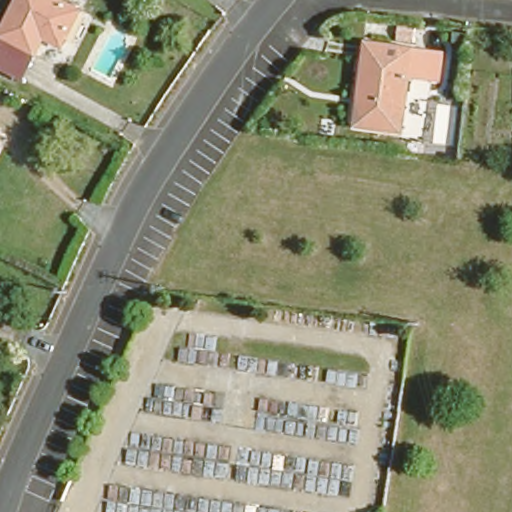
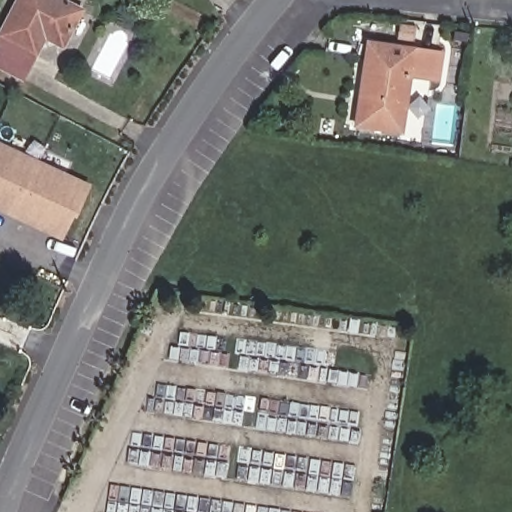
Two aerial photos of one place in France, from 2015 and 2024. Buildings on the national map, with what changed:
unchanged [(63,33),(46,24),(23,66),(0,55),(0,22),(11,0),(79,0),(80,0),(63,33)]
unchanged [(442,46),(440,75),(406,71),(397,130),(352,125),(363,39),(442,46)]
new [(0,142),(89,184),(62,241),(0,213),(0,142)]

